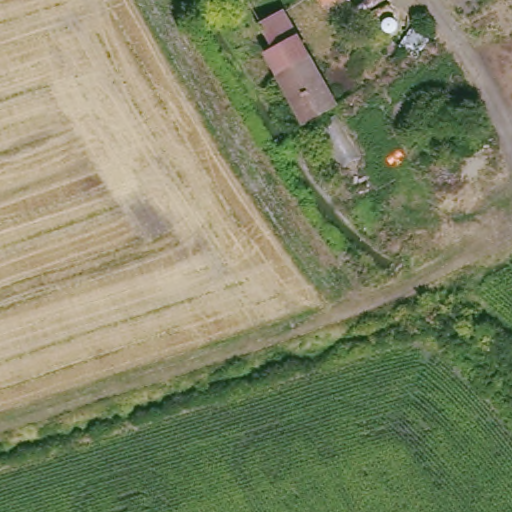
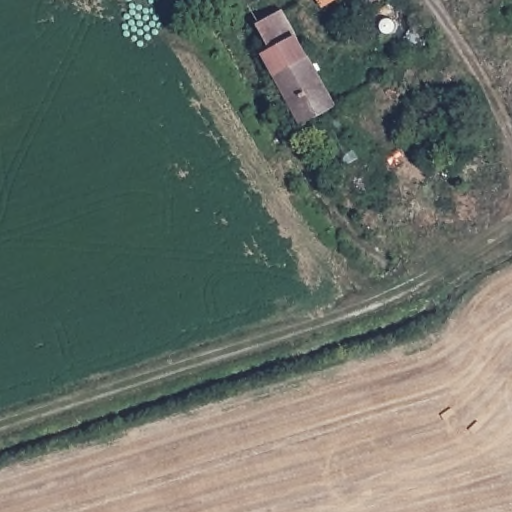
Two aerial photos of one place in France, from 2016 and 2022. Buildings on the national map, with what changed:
unchanged [(329,7),(324,0),(339,0),(329,7)]
unchanged [(300,119),(258,50),(265,44),(252,22),(278,7),(290,29),(332,100),(300,119)]
unchanged [(403,19),(404,27),(399,34),(393,32),(390,28),(390,23),(397,17),(403,19)]

